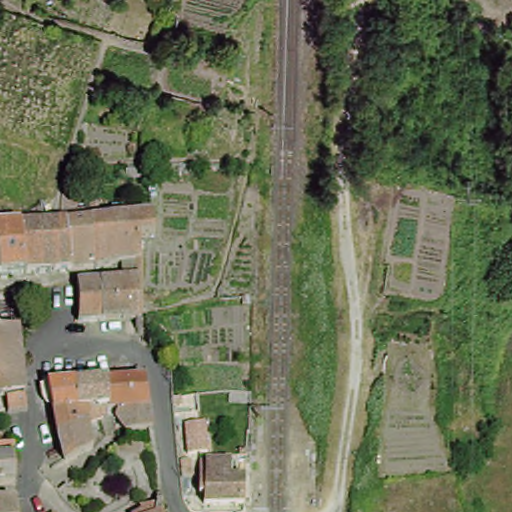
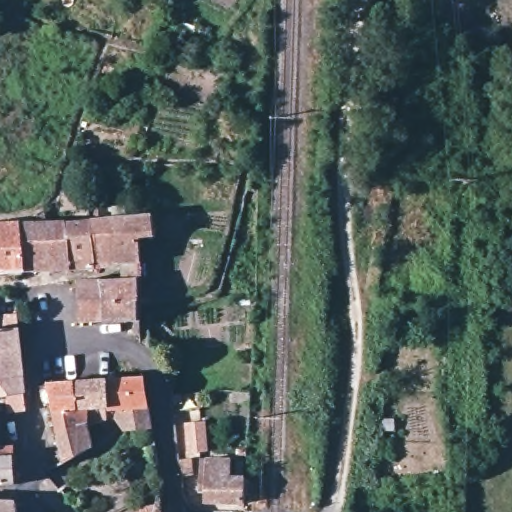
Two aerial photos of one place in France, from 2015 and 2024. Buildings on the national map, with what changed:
unchanged [(142,328),(110,328),(108,287),(129,286),(128,277),(112,278),(111,272),(103,273),(76,275),(60,275),(31,277),(28,230),(40,229),(39,219),(48,219),(48,228),(55,228),(65,227),(64,220),(78,176),(88,175),(83,213),(96,212),(107,211),(108,224),(118,223),(138,222),(159,220),(163,243),(148,245),(146,267),(147,285),(147,305),(161,301),(163,308),(147,311),(148,343),(143,337),(142,328)]
unchanged [(31,277),(8,278),(6,231),(28,230),(31,277)]
unchanged [(6,231),(8,278),(0,279),(0,232),(6,231)]
unchanged [(84,328),(83,288),(108,287),(110,328),(84,328)]
unchanged [(20,335),(27,419),(8,420),(6,405),(0,407),(0,337),(20,335)]
unchanged [(139,379),(139,375),(146,375),(149,409),(153,430),(127,435),(119,418),(108,420),(106,382),(139,379)]
unchanged [(48,456),(61,453),(58,435),(54,413),(51,398),(43,399),(41,387),(75,384),(106,382),(108,420),(109,436),(106,436),(100,424),(88,427),(94,450),(53,473),(48,456)]
unchanged [(187,448),(186,421),(206,421),(208,448),(187,448)]
unchanged [(3,440),(4,456),(13,455),(16,495),(0,495),(0,441),(3,440)]
unchanged [(192,462),(199,462),(199,473),(193,473),(192,462)]
unchanged [(237,482),(251,482),(250,508),(213,507),(212,498),(206,498),(206,463),(237,463),(237,482)]
unchanged [(18,504),(18,512),(0,512),(0,504),(18,504)]
unchanged [(163,512),(148,512),(163,508),(163,512)]

